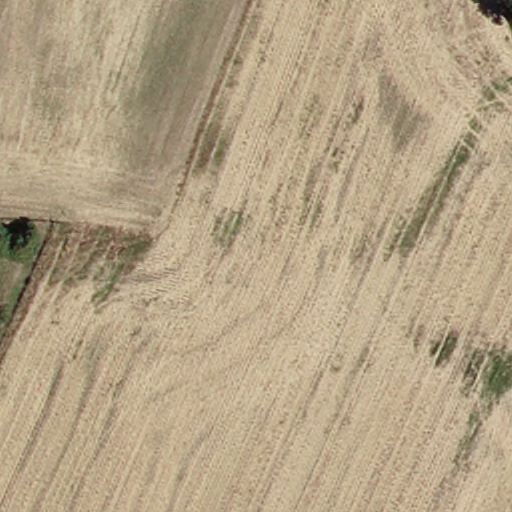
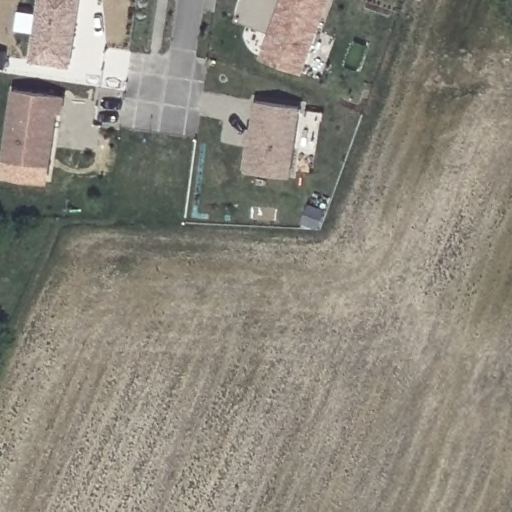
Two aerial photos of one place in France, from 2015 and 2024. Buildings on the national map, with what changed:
new [(32,62),(41,0),(80,0),(70,67),(32,62)]
new [(287,0),(331,0),(301,75),(265,61),(287,0)]
new [(67,98),(65,115),(59,115),(52,169),(4,162),(12,89),(67,98)]
new [(301,108),(291,177),(247,171),(258,102),(301,108)]

